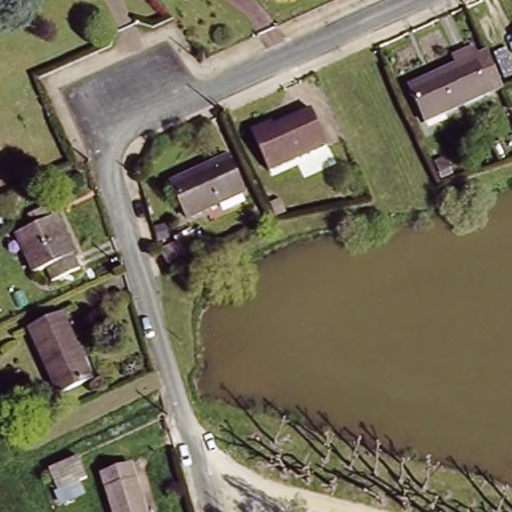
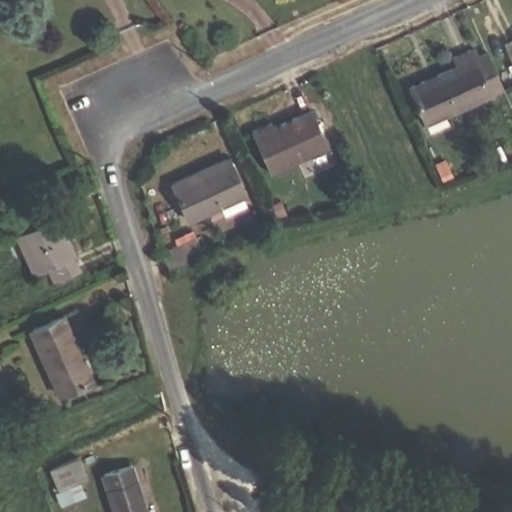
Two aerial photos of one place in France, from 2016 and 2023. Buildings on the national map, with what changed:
unchanged [(413,87),(462,65),(457,57),(472,49),(477,58),(492,51),(508,86),(428,123),(413,87)]
unchanged [(255,128),(275,119),(277,124),(315,107),(332,144),(274,169),(255,128)]
unchanged [(174,183),(232,159),(247,194),(190,218),(174,183)]
unchanged [(25,232),(63,215),(86,266),(60,277),(54,265),(42,270),(25,232)]
unchanged [(160,259),(192,244),(202,264),(169,280),(160,259)]
unchanged [(28,327),(59,313),(88,376),(57,391),(28,327)]
unchanged [(52,468),(79,457),(88,477),(62,490),(52,468)]
unchanged [(106,476),(130,465),(151,512),(122,512),(106,476)]

